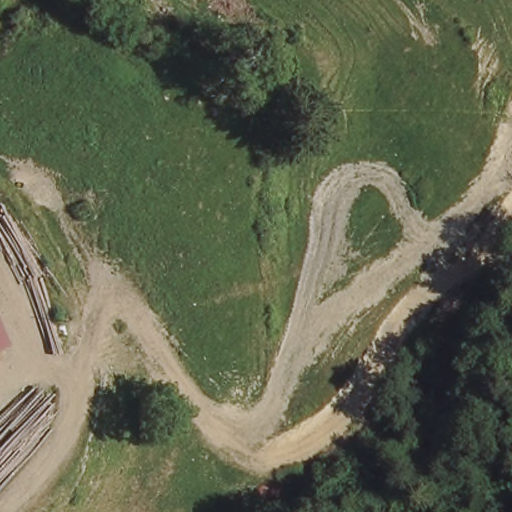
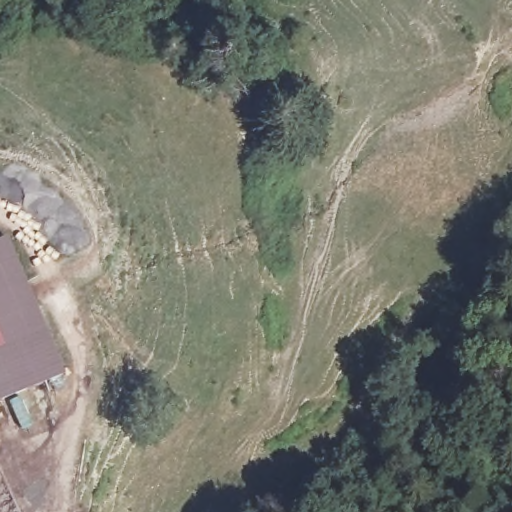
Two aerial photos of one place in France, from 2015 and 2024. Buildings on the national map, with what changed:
new [(67,374),(0,403),(0,241),(9,237),(67,374)]

